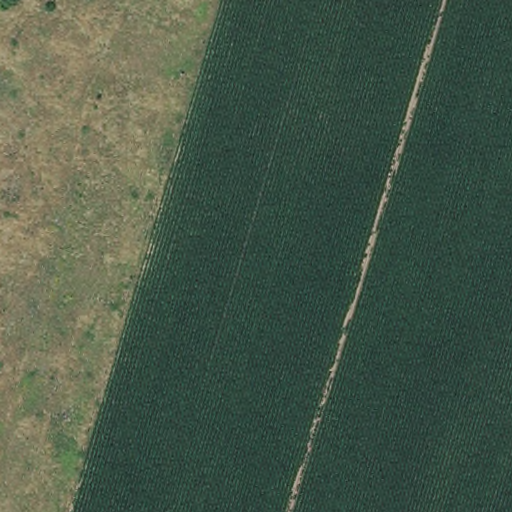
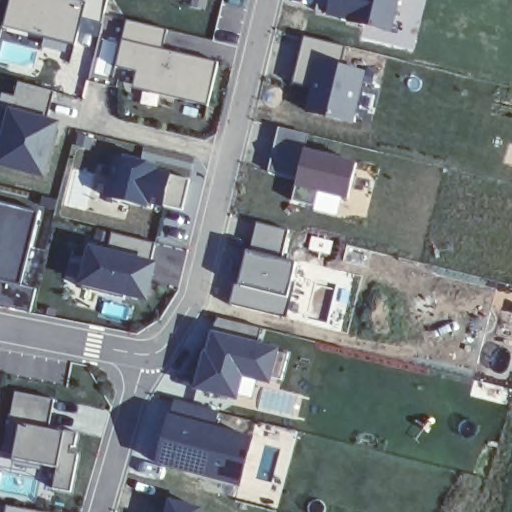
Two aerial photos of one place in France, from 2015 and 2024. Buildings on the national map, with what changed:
new [(98,26),(79,20),(73,46),(0,29),(8,0),(105,0),(98,26)]
new [(238,48),(213,41),(222,0),(248,0),(238,48)]
new [(390,31),(321,14),(324,0),(396,0),(390,31)]
new [(165,31),(160,51),(216,62),(205,105),(131,89),(136,71),(113,66),(123,22),(165,31)]
new [(353,124),(301,111),(306,87),(289,83),(300,39),(345,47),(341,65),(363,72),(353,124)]
new [(0,107),(0,94),(13,97),(15,82),(54,92),(45,117),(58,122),(43,180),(0,168),(0,124),(4,107),(0,107)]
new [(309,135),(306,149),(354,163),(347,202),(314,191),(311,208),(291,206),(295,176),(266,169),(276,126),(309,135)]
new [(156,164),(155,172),(186,180),(179,212),(151,205),(149,210),(101,200),(113,152),(156,164)]
new [(25,256),(19,283),(18,283),(36,287),(28,312),(0,308),(0,202),(36,211),(25,256)]
new [(286,231),(279,258),(288,263),(285,280),(294,282),(286,317),(233,303),(253,221),(286,231)]
new [(142,302),(74,286),(84,244),(106,249),(110,234),(154,245),(142,302)]
new [(276,346),(266,384),(239,378),(233,401),(191,391),(206,329),(276,346)]
new [(53,398),(48,429),(80,435),(70,495),(50,491),(54,464),(3,453),(14,391),(53,398)]
new [(238,486),(133,456),(149,397),(219,412),(213,428),(250,438),(238,486)]
new [(159,512),(162,501),(199,510),(199,512),(159,512)]
new [(4,512),(4,507),(35,512),(4,512)]

